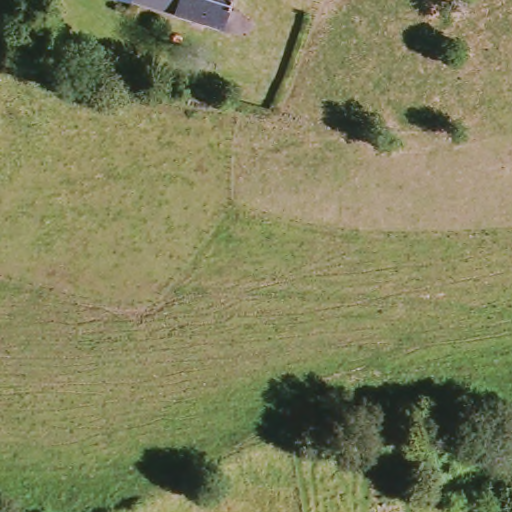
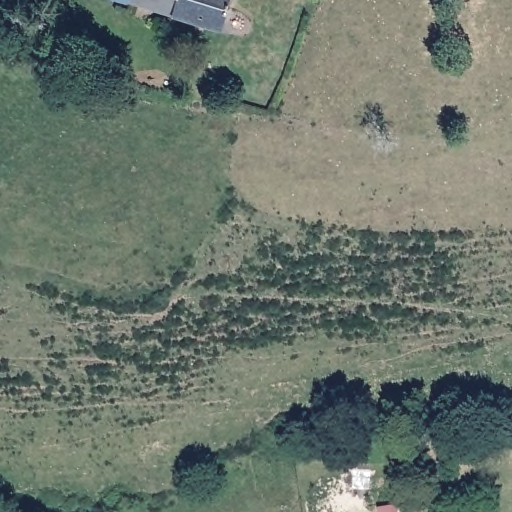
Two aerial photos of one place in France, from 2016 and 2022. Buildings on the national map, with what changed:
unchanged [(216,25),(140,0),(223,0),(216,25)]

